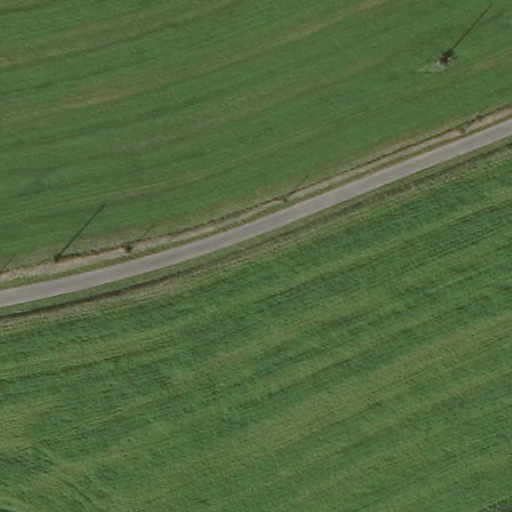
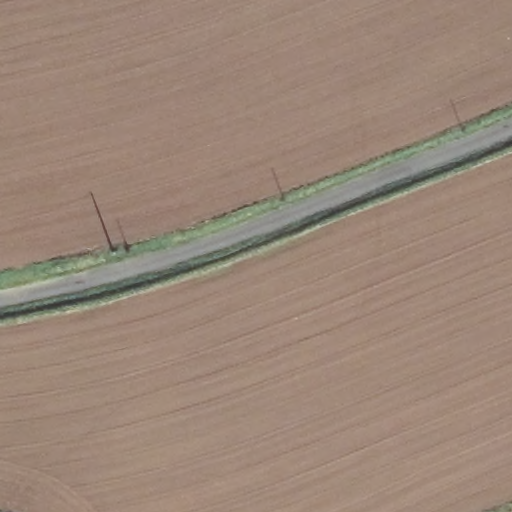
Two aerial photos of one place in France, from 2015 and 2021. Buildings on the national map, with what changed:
[]

